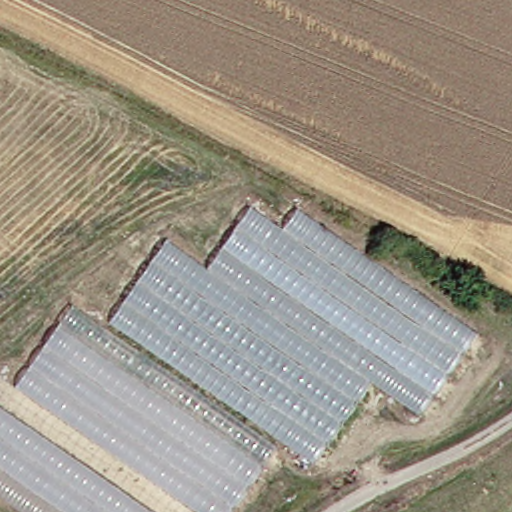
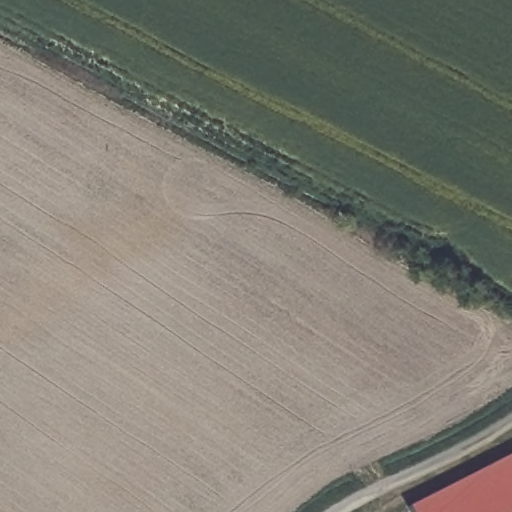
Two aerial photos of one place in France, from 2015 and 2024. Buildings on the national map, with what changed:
demolished [(410,414),(360,379),(302,462),(277,443),(267,437),(107,327),(155,242),(198,269),(242,208),(271,231),(288,210),(468,331),(410,414)]
demolished [(232,512),(13,512),(0,503),(0,374),(16,384),(72,304),(107,327),(267,437),(277,443),(232,512)]
new [(405,508),(512,455),(512,511),(510,512),(407,512),(405,508)]

